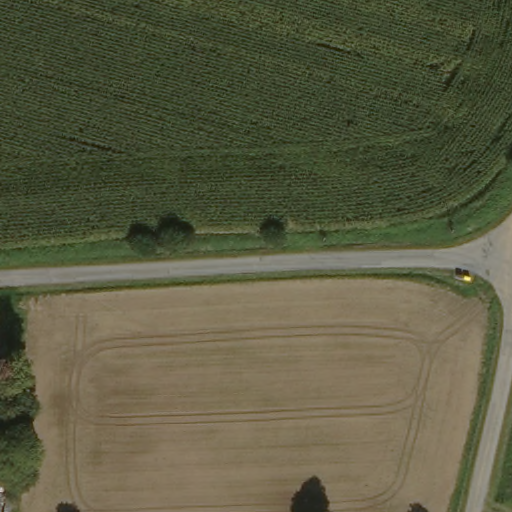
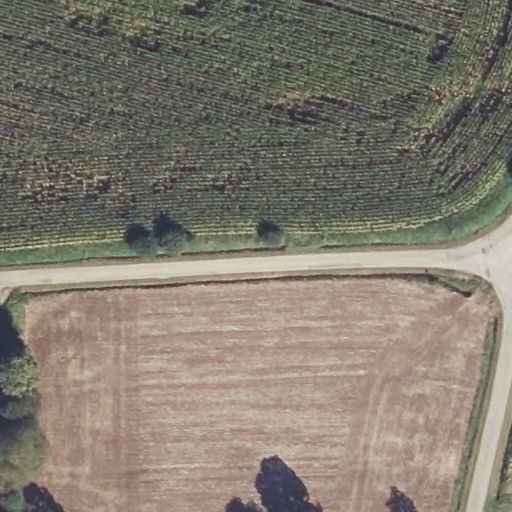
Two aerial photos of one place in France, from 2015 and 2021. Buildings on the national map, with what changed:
[]

